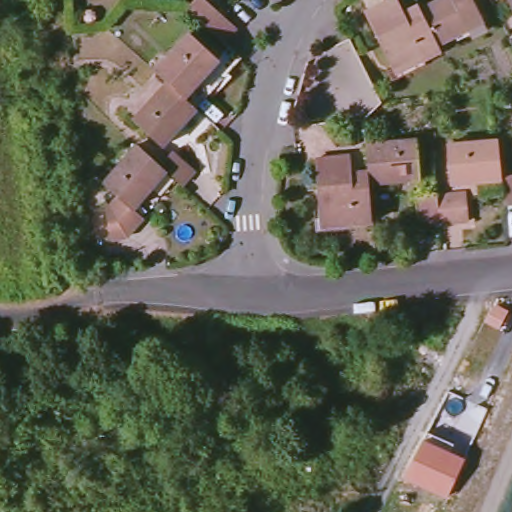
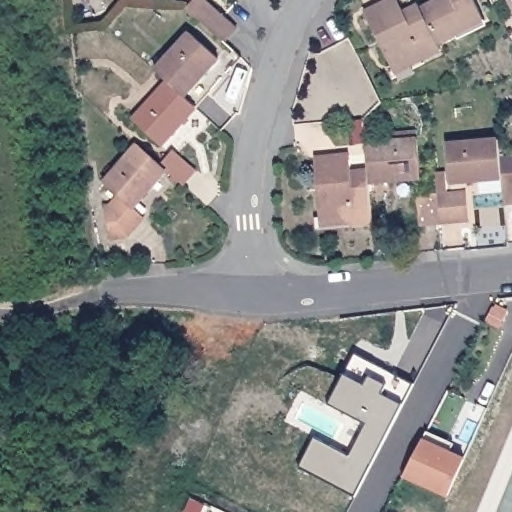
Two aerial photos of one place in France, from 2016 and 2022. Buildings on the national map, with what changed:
unchanged [(195,0),(207,0),(225,16),(237,27),(224,41),(187,9),(195,0)]
unchanged [(422,14),(450,0),(477,0),(474,2),(485,26),(439,49),(430,32),(422,14)]
unchanged [(507,0),(512,0),(512,10),(507,0)]
unchanged [(395,79),(365,18),(398,2),(405,16),(419,9),(422,14),(430,32),(439,49),(442,55),(395,79)]
unchanged [(182,94),(180,91),(165,78),(152,66),(187,29),(215,54),(202,68),(210,74),(188,99),(187,99),(182,94)]
unchanged [(160,141),(130,115),(165,78),(180,91),(182,94),(187,99),(188,99),(193,104),(160,141)]
unchanged [(371,173),(369,145),(419,140),(422,179),(372,183),(371,173)]
unchanged [(432,158),(430,146),(484,141),(487,181),(434,185),(432,158)]
unchanged [(112,205),(120,196),(105,183),(138,145),(158,164),(163,168),(176,153),(199,173),(185,189),(170,174),(167,172),(134,208),(144,216),(127,235),(112,238),(107,207),(112,205)]
unchanged [(324,227),(319,159),(352,156),(353,174),(371,173),(372,183),(375,209),(375,222),(324,227)]
unchanged [(505,193),(504,177),(512,176),(512,205),(507,206),(505,193)]
unchanged [(415,195),(435,194),(455,192),(457,223),(437,224),(418,227),(415,195)]
new [(415,384),(404,404),(355,497),(300,469),(315,439),(350,458),(367,424),(330,405),(345,374),(356,354),(415,384)]
unchanged [(465,457),(445,497),(402,477),(421,438),(465,457)]

